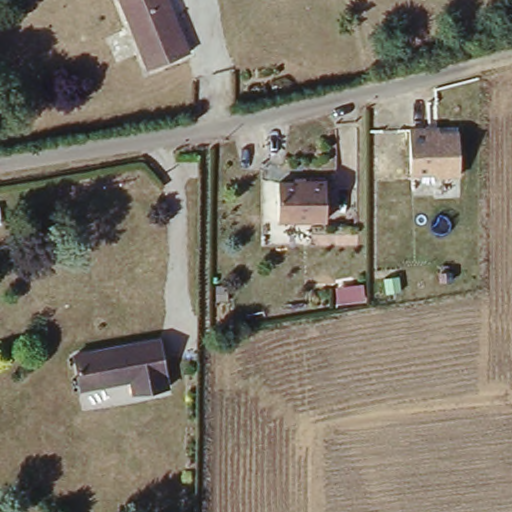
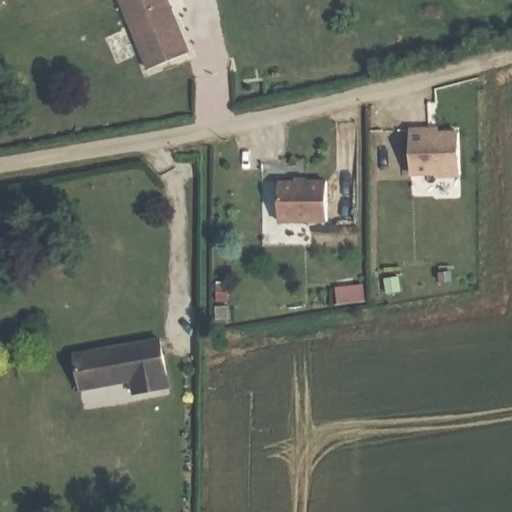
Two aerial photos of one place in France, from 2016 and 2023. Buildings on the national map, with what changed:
unchanged [(187,52),(147,68),(123,0),(168,0),(187,52)]
unchanged [(460,130),(461,174),(411,174),(410,130),(460,130)]
unchanged [(294,178),(305,178),(305,183),(327,183),(326,222),(277,222),(278,183),(294,183),(294,178)]
unchanged [(164,347),(170,395),(135,400),(134,388),(84,395),(78,360),(164,347)]

